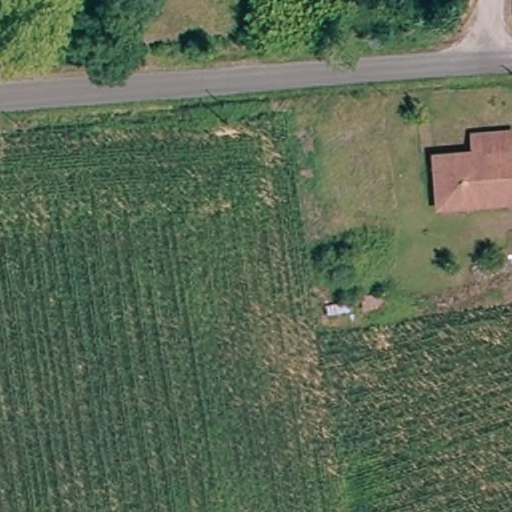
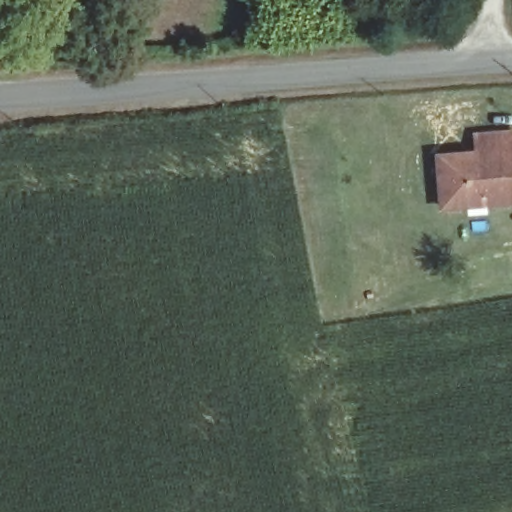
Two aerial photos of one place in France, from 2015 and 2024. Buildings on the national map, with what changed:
unchanged [(440,162),(473,158),(471,130),(512,125),(512,204),(504,205),(491,206),(467,210),(463,211),(445,213),(440,162)]

